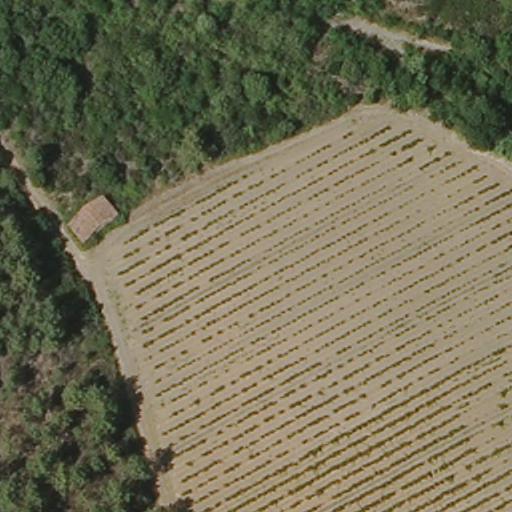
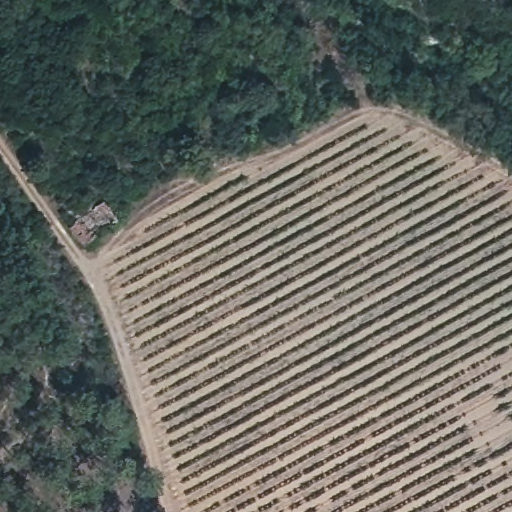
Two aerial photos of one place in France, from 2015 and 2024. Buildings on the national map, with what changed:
unchanged [(75,217),(109,190),(122,211),(87,237),(75,217)]

